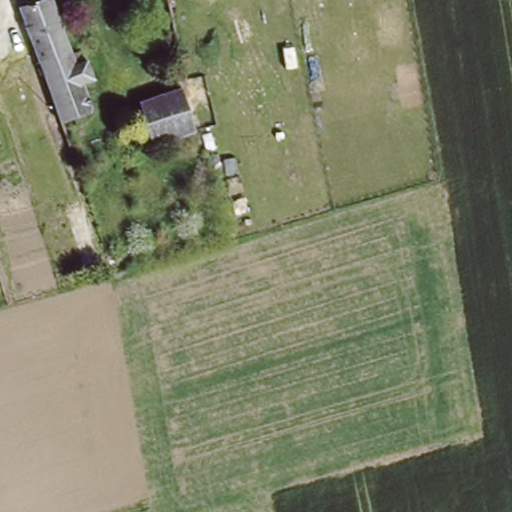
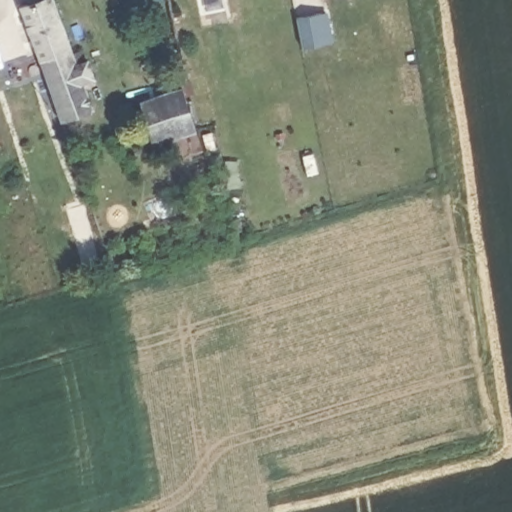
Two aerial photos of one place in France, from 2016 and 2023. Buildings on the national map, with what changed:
unchanged [(40,64),(24,11),(28,10),(25,1),(30,0),(41,0),(42,4),(43,9),(50,6),(65,56),(40,64)]
unchanged [(66,60),(79,57),(85,80),(74,84),(84,119),(57,126),(40,64),(65,56),(66,60)]
unchanged [(167,94),(192,87),(202,131),(182,137),(167,94)]
unchanged [(182,137),(131,151),(129,142),(119,107),(167,94),(182,137)]

